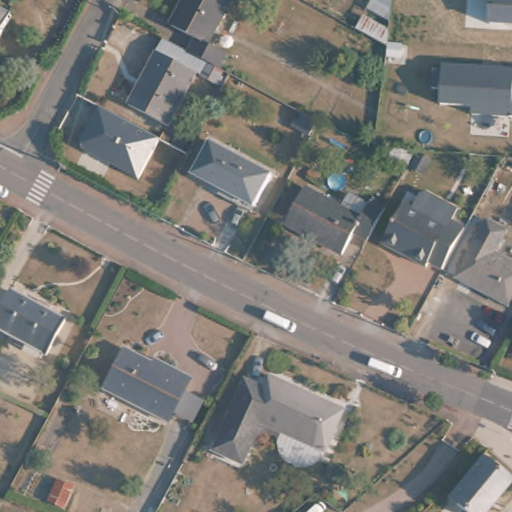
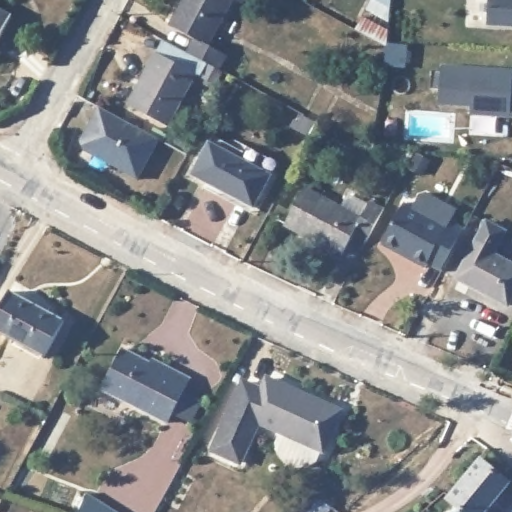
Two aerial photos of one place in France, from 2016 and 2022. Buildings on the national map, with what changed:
unchanged [(191,54),(197,41),(174,29),(189,0),(246,0),(243,6),(234,1),(210,46),(227,56),(221,70),(191,54)]
unchanged [(487,25),(488,10),(476,9),(476,0),(512,0),(512,27),(487,25)]
unchanged [(0,43),(0,12),(13,18),(0,43)]
unchanged [(358,33),(367,18),(390,32),(389,49),(358,33)]
unchanged [(131,107),(159,55),(197,76),(170,128),(131,107)]
unchanged [(442,72),(442,67),(512,71),(512,117),(473,115),(473,107),(438,105),(440,91),(432,91),(432,71),(442,72)]
unchanged [(140,178),(77,145),(99,105),(161,139),(140,178)]
unchanged [(224,191),(226,186),(200,172),(213,147),(272,179),(256,208),(224,191)]
unchanged [(357,235),(344,256),(288,225),(308,191),(344,210),(352,198),(371,208),(372,205),(386,212),(370,242),(357,235)]
unchanged [(432,265),(429,269),(386,246),(407,207),(448,229),(416,211),(418,193),(428,192),(458,210),(452,224),(466,231),(443,271),(432,265)]
unchanged [(462,275),(490,220),(507,230),(496,251),(512,260),(512,297),(509,302),(462,275)]
unchanged [(0,318),(12,296),(66,323),(47,358),(0,333),(0,318)]
unchanged [(158,414),(95,380),(115,342),(141,355),(143,352),(181,372),(179,377),(196,386),(178,419),(161,409),(158,414)]
unchanged [(196,458),(207,434),(217,438),(246,379),(264,387),(270,376),(341,408),(322,447),(321,447),(316,457),(304,460),(297,460),(287,456),(282,450),(276,439),(281,429),(261,420),(242,459),(213,447),(206,462),(196,458)]
unchanged [(490,512),(465,512),(450,499),(481,460),(512,484),(490,512)]
new [(115,512),(81,512),(87,495),(115,512)]

